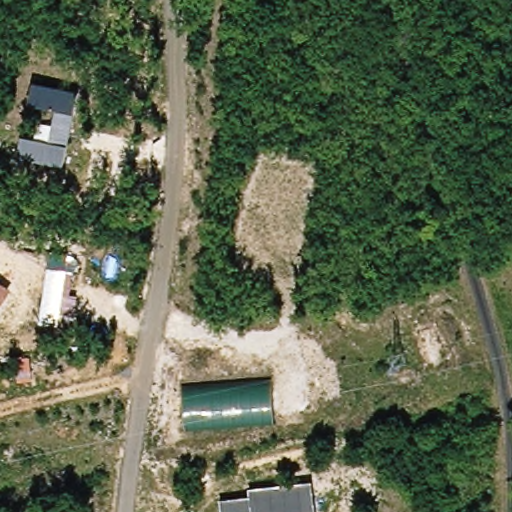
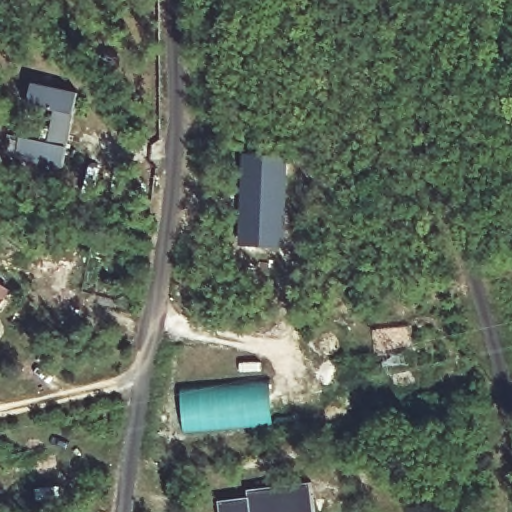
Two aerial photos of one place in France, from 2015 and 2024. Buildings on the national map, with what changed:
unchanged [(48,145),(56,111),(28,105),(33,81),(78,90),(63,171),(15,161),(20,138),(48,145)]
new [(291,158),(285,249),(239,246),(244,155),(291,158)]
unchanged [(11,289),(0,306),(0,282),(11,289)]
unchanged [(275,424),(185,432),(182,383),(271,376),(275,424)]
unchanged [(222,503),(250,500),(250,489),(313,482),(316,512),(224,512),(222,503)]

